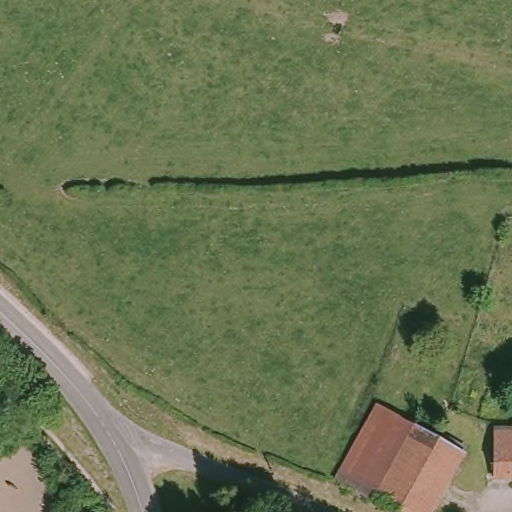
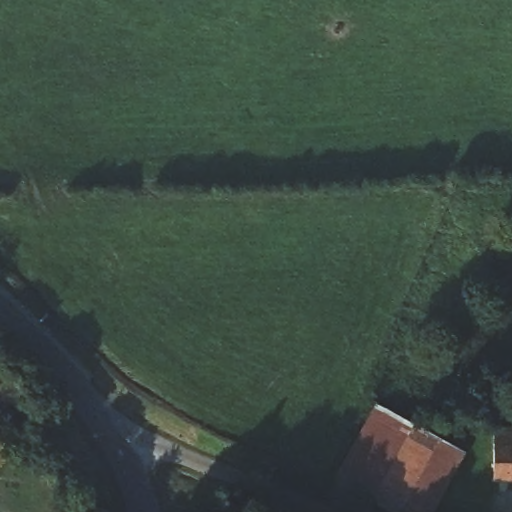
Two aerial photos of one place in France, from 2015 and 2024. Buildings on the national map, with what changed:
unchanged [(464,449),(432,512),(401,512),(338,479),(375,404),(429,431),(464,449)]
unchanged [(512,434),(512,483),(495,485),(492,458),(490,437),(512,434)]

